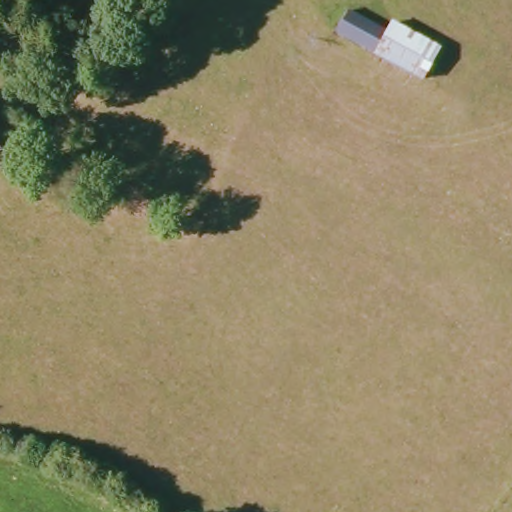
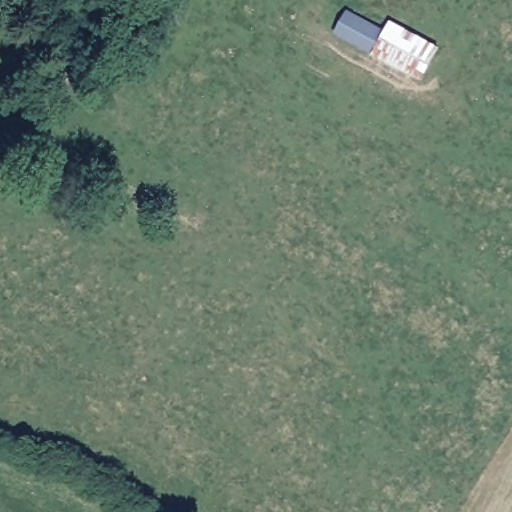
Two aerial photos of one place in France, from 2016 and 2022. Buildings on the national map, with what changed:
unchanged [(367,52),(335,36),(348,14),(378,29),(367,52)]
unchanged [(385,56),(396,26),(440,47),(430,74),(385,56)]

